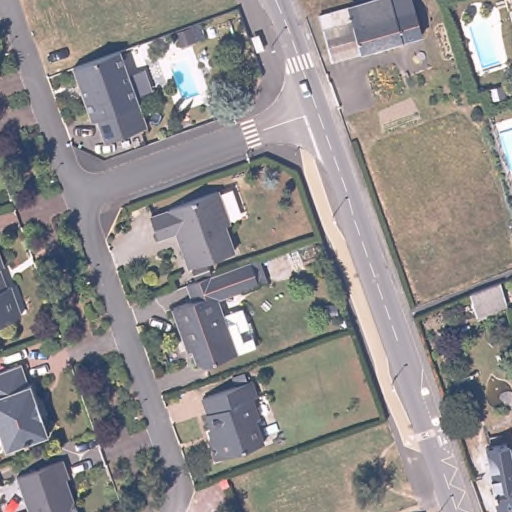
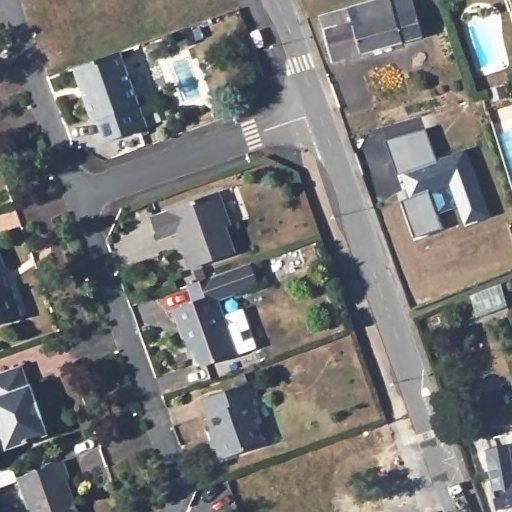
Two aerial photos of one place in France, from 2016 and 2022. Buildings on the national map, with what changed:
unchanged [(411,0),(424,36),(333,61),(317,18),(376,0),(411,0)]
unchanged [(103,57),(119,52),(146,129),(105,142),(98,121),(92,122),(71,69),(103,57)]
new [(425,129),(435,161),(464,152),(484,219),(461,226),(448,186),(427,192),(438,230),(409,239),(398,201),(407,197),(399,174),(395,175),(384,141),(425,129)]
unchanged [(154,236),(148,219),(146,215),(154,212),(165,209),(164,205),(195,194),(213,187),(225,221),(219,223),(229,249),(185,265),(177,241),(173,229),(154,236)]
unchanged [(0,271),(0,251),(7,270),(0,271)]
unchanged [(178,342),(167,311),(189,303),(183,287),(217,275),(245,264),(252,262),(260,283),(253,287),(213,301),(219,318),(234,313),(238,315),(250,348),(198,367),(191,365),(187,351),(182,352),(178,342)]
unchanged [(13,287),(24,320),(0,328),(0,274),(5,290),(13,287)]
unchanged [(506,287),(512,307),(482,320),(475,300),(506,287)]
unchanged [(26,386),(29,386),(46,436),(4,451),(0,439),(0,373),(19,366),(26,386)]
unchanged [(245,383),(251,397),(247,400),(253,418),(248,420),(258,445),(211,461),(204,442),(209,441),(200,416),(202,416),(197,402),(235,387),(245,383)]
unchanged [(17,482),(63,465),(69,482),(64,483),(75,512),(28,512),(17,482)]
unchanged [(496,482),(512,479),(512,512),(509,512),(501,512),(496,482)]

